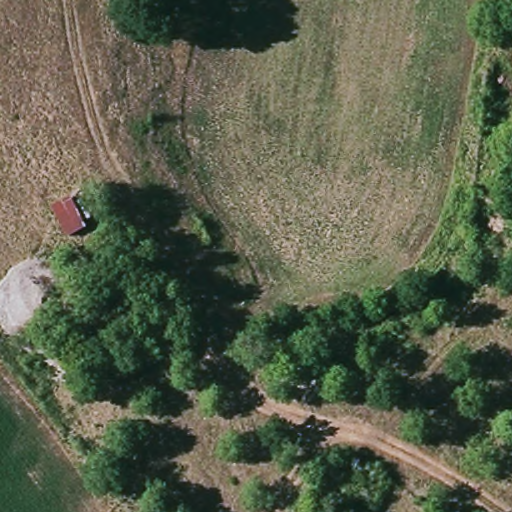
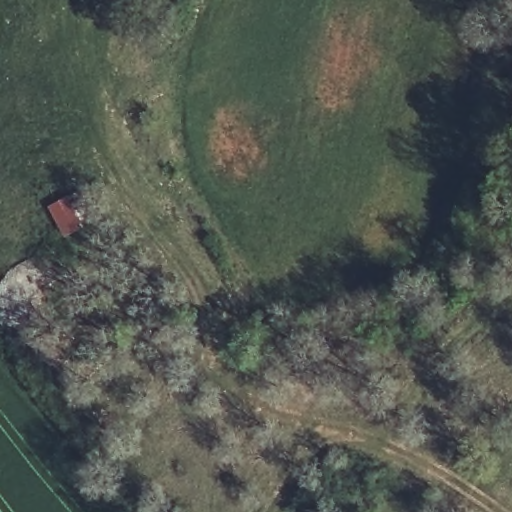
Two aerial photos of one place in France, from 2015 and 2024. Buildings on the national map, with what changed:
unchanged [(65,199),(68,203),(77,200),(87,221),(80,224),(82,229),(65,238),(50,209),(65,199)]

